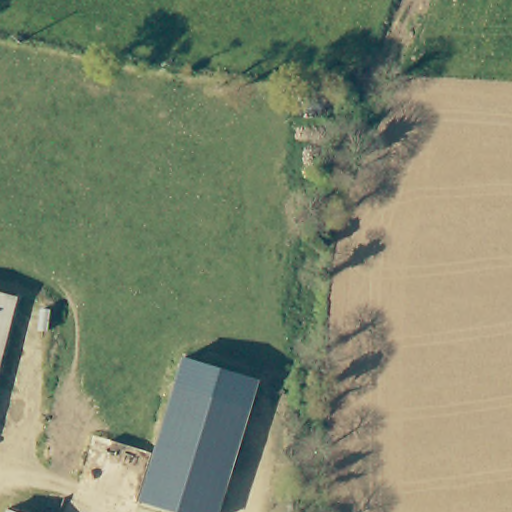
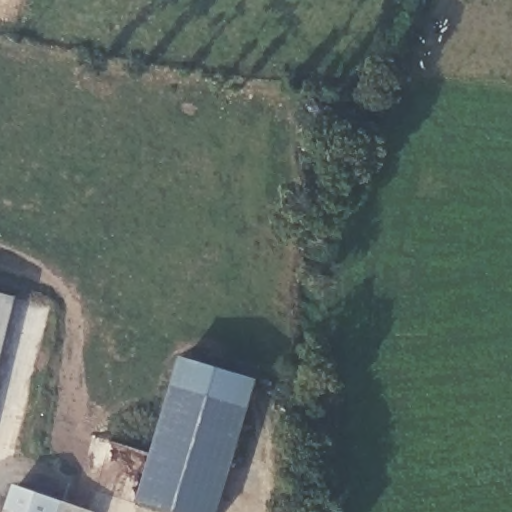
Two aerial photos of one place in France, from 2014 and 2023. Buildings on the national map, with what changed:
unchanged [(0,361),(0,293),(15,297),(0,361)]
unchanged [(214,512),(172,512),(137,502),(179,358),(254,379),(214,512)]
new [(93,512),(10,512),(9,512),(16,487),(93,512)]

